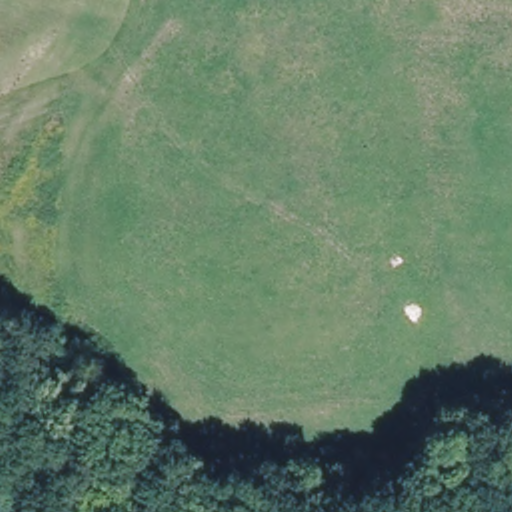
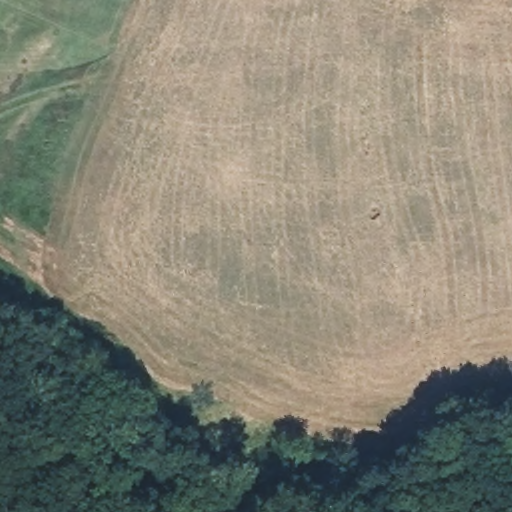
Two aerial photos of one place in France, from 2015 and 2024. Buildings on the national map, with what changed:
[]

